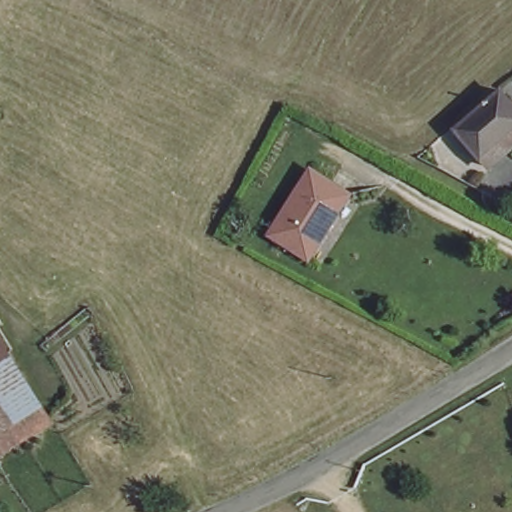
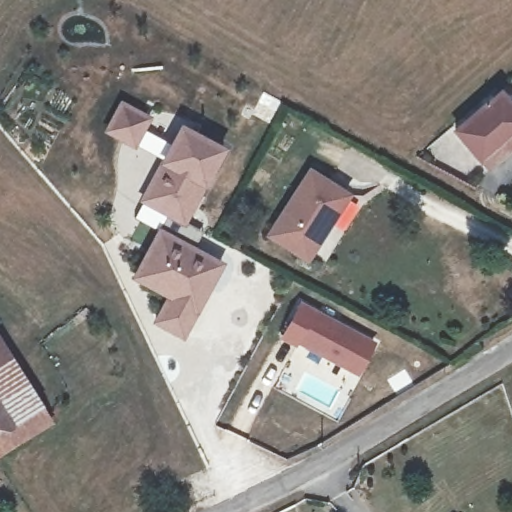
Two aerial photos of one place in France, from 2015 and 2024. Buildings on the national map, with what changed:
unchanged [(487,160),(459,126),(501,89),(512,102),(512,139),(487,160)]
new [(227,138),(187,220),(140,196),(181,113),(227,138)]
unchanged [(300,250),(267,229),(308,165),(342,189),(300,250)]
new [(223,259),(184,337),(152,320),(164,298),(129,278),(158,221),(223,259)]
new [(358,376),(298,343),(296,347),(279,338),(300,299),(376,340),(358,376)]
unchanged [(0,443),(0,380),(29,428),(0,443)]

